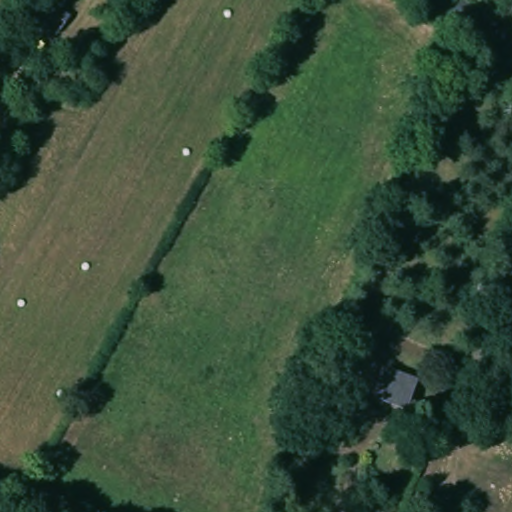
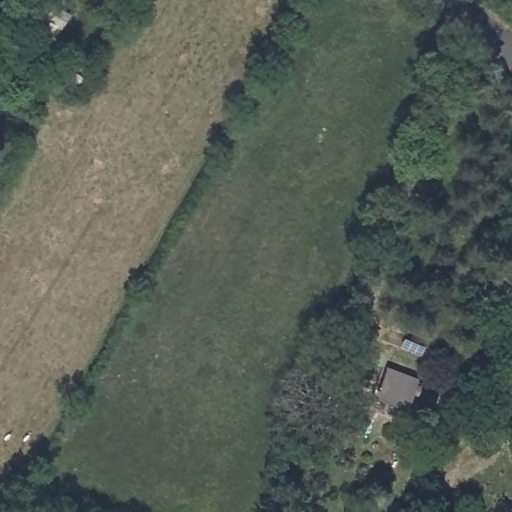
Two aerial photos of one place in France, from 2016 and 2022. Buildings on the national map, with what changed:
unchanged [(48,0),(72,15),(48,50),(23,31),(48,0)]
unchanged [(349,340),(344,351),(331,346),(336,335),(349,340)]
unchanged [(392,365),(422,376),(411,408),(378,396),(392,365)]

